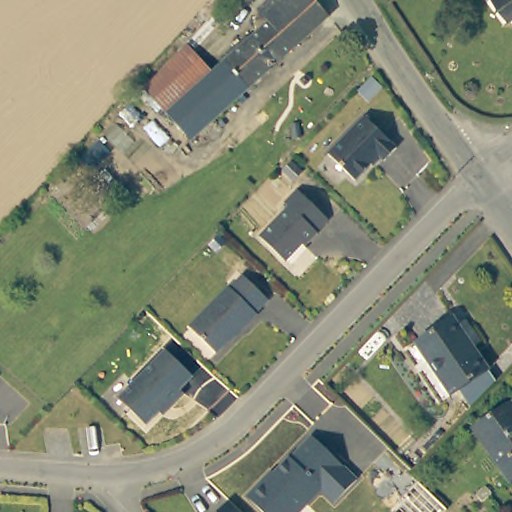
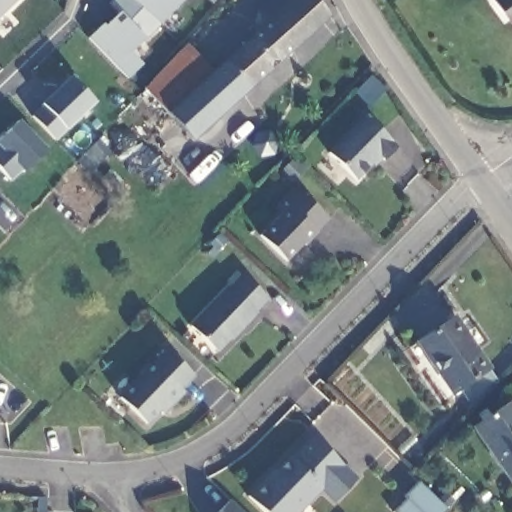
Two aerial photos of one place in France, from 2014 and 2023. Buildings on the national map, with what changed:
new [(17,0),(0,17),(0,0),(17,0)]
new [(131,55),(143,67),(129,81),(90,40),(104,26),(106,28),(120,15),(110,6),(116,0),(132,0),(160,27),(131,55)]
new [(132,0),(186,0),(160,27),(132,0)]
unchanged [(191,140),(167,114),(212,73),(261,30),(254,22),(257,10),(268,0),(314,0),(328,16),(191,140)]
unchanged [(495,0),(512,0),(512,16),(509,19),(504,12),(495,0)]
unchanged [(212,73),(167,114),(144,88),(186,45),(212,73)]
new [(67,131),(54,141),(29,116),(40,105),(68,76),(95,103),(67,131)]
unchanged [(305,76),(306,76),(307,76),(308,76),(308,77),(309,78),(309,79),(309,80),(309,81),(309,83),(308,83),(307,84),(306,85),(305,85),(304,85),(303,85),(302,84),(301,83),(300,81),(305,76)]
unchanged [(364,116),(397,148),(384,161),(379,156),(355,180),(328,154),(364,116)]
unchanged [(110,151),(88,173),(77,161),(99,140),(110,151)]
unchanged [(301,170),(293,179),(284,171),(292,161),(301,170)]
unchanged [(288,206),(284,202),(297,189),(329,220),(317,232),(318,233),(305,246),(303,244),(286,262),(259,236),(288,206)]
unchanged [(218,235),(225,242),(217,251),(210,244),(218,235)]
unchanged [(190,327),(229,286),(230,288),(243,275),(268,299),(255,312),(257,314),(243,328),(241,327),(216,353),(190,327)]
unchanged [(454,384),(446,389),(424,357),(427,355),(414,335),(448,312),(452,319),(468,343),(491,376),(466,401),(454,384)]
unchanged [(166,350),(193,376),(180,389),(184,393),(169,407),(166,404),(146,425),(119,399),(166,350)]
unchanged [(512,480),(510,482),(473,428),(510,402),(512,404),(512,480)]
unchanged [(335,502),(321,489),(299,512),(263,512),(247,497),(264,479),(267,481),(289,457),(290,458),(312,436),(357,479),(335,502)]
unchanged [(446,509),(443,512),(393,512),(407,499),(405,496),(418,482),(446,509)]
unchanged [(229,500),(242,512),(218,512),(229,500)]

